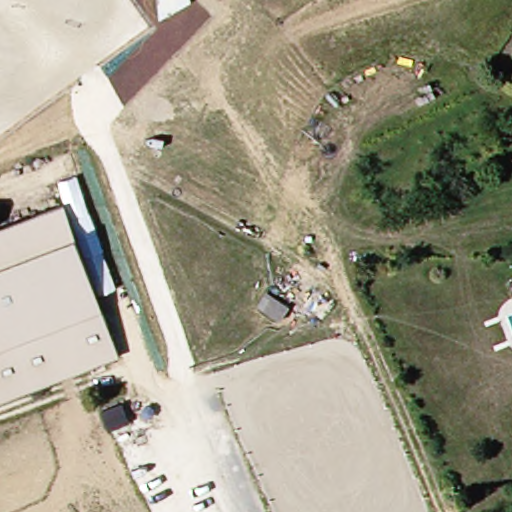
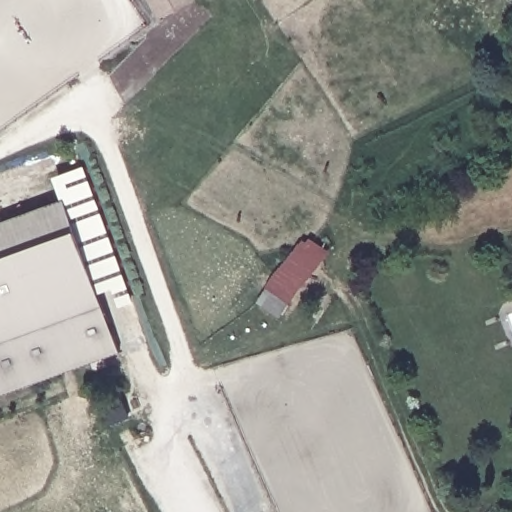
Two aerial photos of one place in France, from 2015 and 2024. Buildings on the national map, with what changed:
new [(149,0),(189,0),(162,20),(149,0)]
unchanged [(65,196),(117,345),(97,352),(42,204),(65,196)]
unchanged [(0,391),(0,221),(42,204),(97,352),(0,391)]
new [(307,235),(330,252),(281,318),(257,301),(307,235)]

